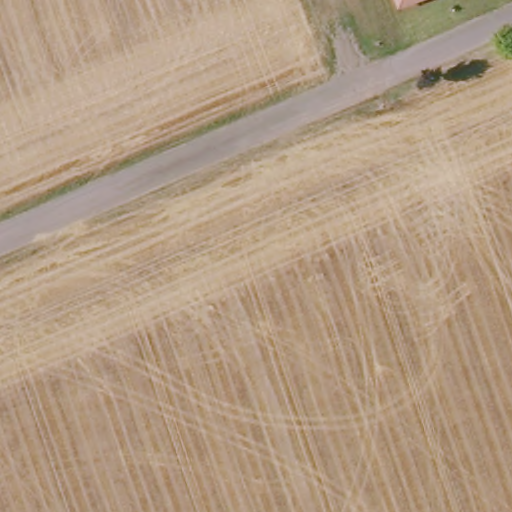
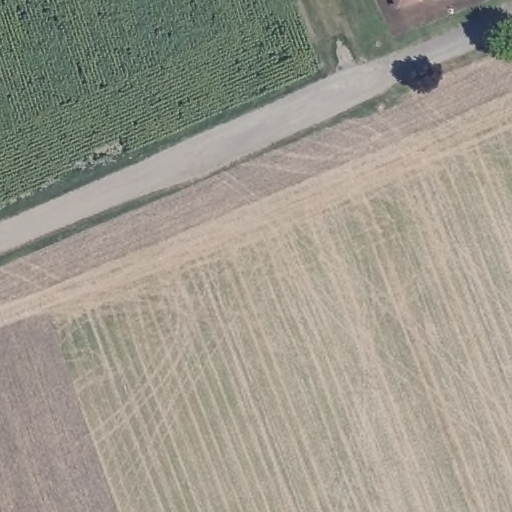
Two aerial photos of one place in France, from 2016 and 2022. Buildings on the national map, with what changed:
unchanged [(399,0),(424,0),(402,8),(399,0)]

